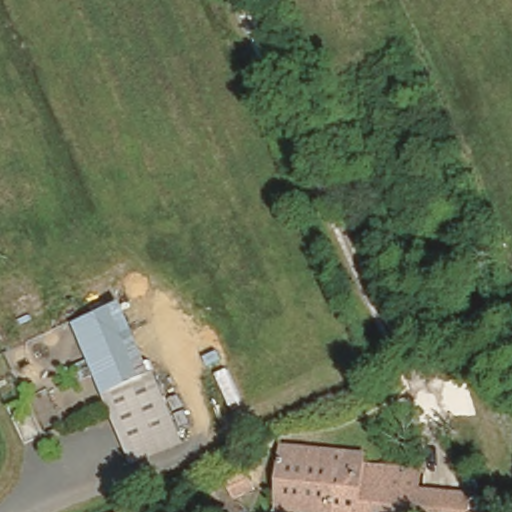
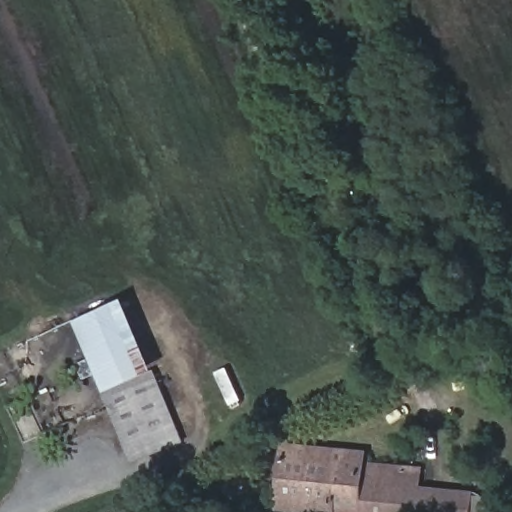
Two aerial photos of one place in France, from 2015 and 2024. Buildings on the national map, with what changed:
unchanged [(131,464),(71,321),(119,300),(148,371),(153,368),(168,399),(178,395),(189,421),(179,426),(185,441),(131,464)]
unchanged [(370,451),(371,463),(416,470),(425,472),(423,485),(422,495),(412,493),(408,512),(283,512),(272,511),(285,438),(370,451)]
unchanged [(236,476),(249,470),(257,490),(238,498),(231,483),(215,490),(211,480),(232,470),(236,476)]
unchanged [(412,493),(422,495),(423,485),(488,493),(486,512),(408,512),(412,493)]

